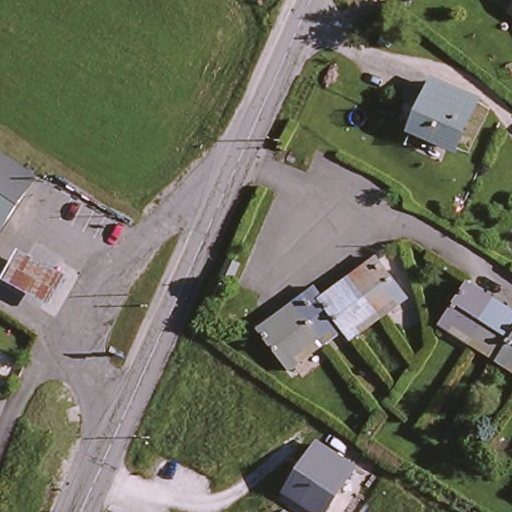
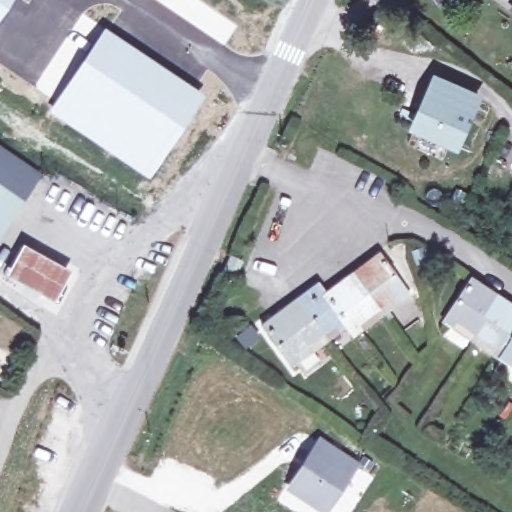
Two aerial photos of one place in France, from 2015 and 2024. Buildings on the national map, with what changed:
new [(11,0),(0,15),(0,0),(11,0)]
new [(103,27),(204,96),(146,180),(47,113),(103,27)]
unchanged [(479,94),(458,141),(415,122),(437,75),(479,94)]
unchanged [(37,172),(0,228),(0,147),(37,172)]
unchanged [(26,242),(72,272),(55,300),(8,272),(26,242)]
unchanged [(246,254),(243,260),(238,271),(230,266),(229,266),(237,249),(246,254)]
unchanged [(301,360),(294,365),(263,322),(318,282),(326,292),(379,252),(409,293),(404,297),(385,311),(361,329),(356,333),(347,323),(343,327),(329,337),(301,360)]
unchanged [(498,348),(480,336),(455,320),(448,316),(476,273),(512,296),(512,357),(510,356),(498,348)]
unchanged [(322,512),(321,512),(288,491),(320,442),(353,466),(322,512)]

